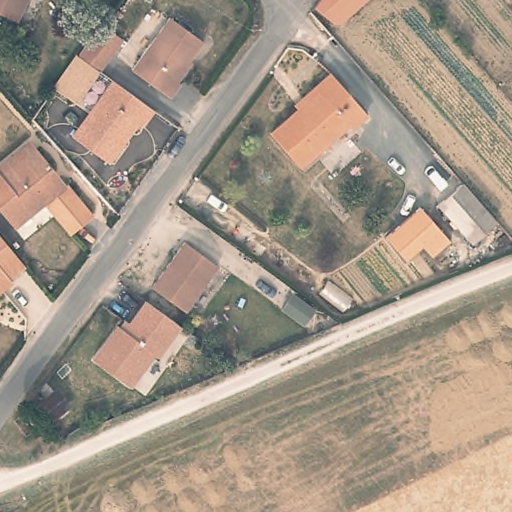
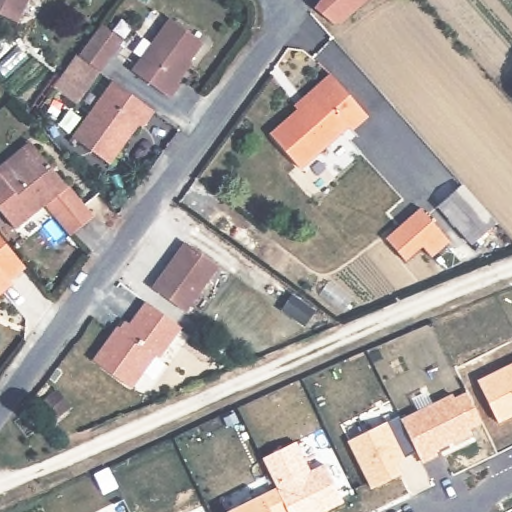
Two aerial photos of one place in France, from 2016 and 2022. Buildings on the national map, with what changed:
unchanged [(22,11),(17,20),(0,12),(0,0),(28,0),(22,11)]
unchanged [(327,17),(309,7),(315,0),(353,0),(327,17)]
unchanged [(165,14),(200,39),(173,77),(178,80),(167,97),(127,68),(165,14)]
unchanged [(102,24),(123,40),(100,71),(79,55),(102,24)]
new [(79,55),(100,71),(77,104),(51,87),(76,53),(79,55)]
unchanged [(351,127),(346,122),(300,165),(270,132),(317,89),(313,84),(327,70),(366,113),(351,127)]
unchanged [(149,112),(137,127),(132,124),(103,163),(67,137),(108,81),(149,112)]
unchanged [(71,231),(44,198),(22,216),(10,225),(0,212),(0,164),(22,145),(31,137),(38,145),(92,214),(71,231)]
unchanged [(491,220),(470,239),(439,204),(459,185),(491,220)]
unchanged [(427,261),(422,255),(419,251),(402,266),(382,243),(417,213),(422,218),(445,245),(427,261)]
new [(26,266),(10,280),(0,268),(0,235),(26,266)]
unchanged [(219,265),(187,311),(150,285),(183,239),(219,265)]
unchanged [(0,293),(0,267),(12,282),(0,293)]
unchanged [(177,321),(164,342),(157,354),(154,351),(132,384),(131,385),(93,361),(104,342),(115,325),(122,330),(142,299),(177,321)]
new [(476,378),(512,361),(512,415),(497,422),(476,378)]
new [(469,429),(470,432),(435,450),(438,456),(422,463),(418,458),(415,452),(396,461),(401,473),(371,488),(347,440),(399,413),(401,417),(451,392),(455,398),(468,391),(483,422),(469,429)]
new [(261,456),(296,439),(309,468),(325,461),(343,504),(326,512),(225,512),(225,511),(261,492),(275,486),(261,456)]

